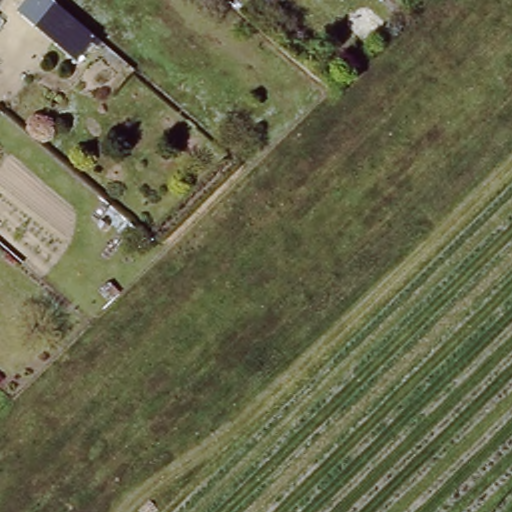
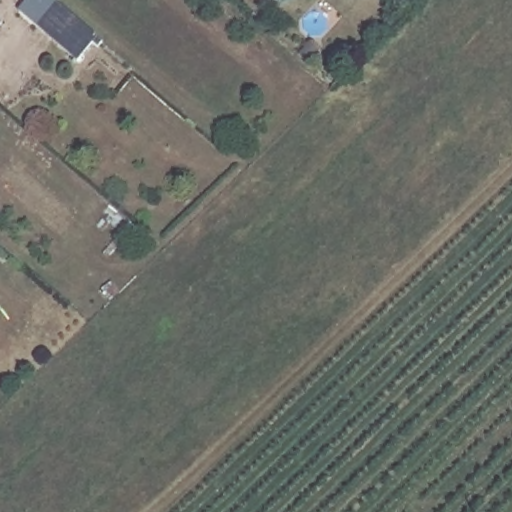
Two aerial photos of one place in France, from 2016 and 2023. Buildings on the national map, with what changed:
unchanged [(1,0),(0,1),(0,0),(1,0)]
unchanged [(90,49),(86,45),(73,60),(23,15),(34,0),(50,0),(97,42),(90,49)]

